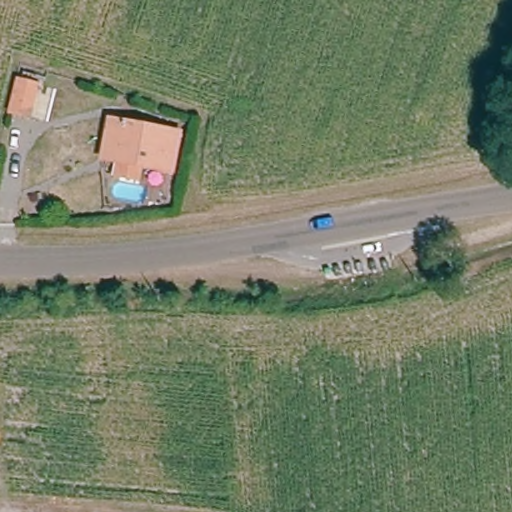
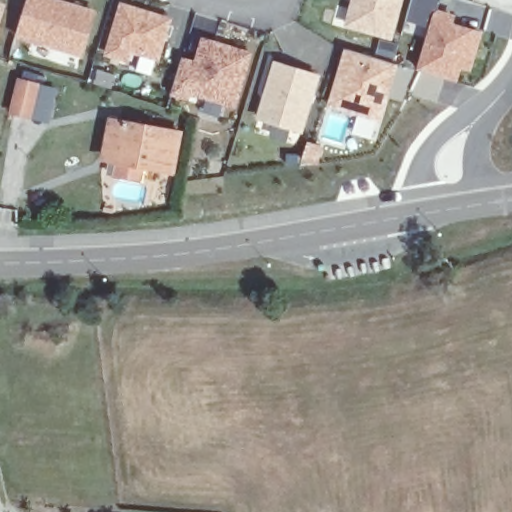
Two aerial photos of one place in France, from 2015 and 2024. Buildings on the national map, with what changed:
new [(94,10),(80,51),(15,31),(25,0),(61,0),(94,10)]
new [(390,35),(348,25),(355,0),(399,0),(390,35)]
new [(432,21),(428,36),(401,29),(409,4),(410,0),(439,0),(436,10),(451,14),(448,22),(480,32),(469,67),(460,64),(455,80),(442,76),(418,69),(432,21)]
new [(2,5),(0,16),(0,5),(2,5)]
new [(169,20),(157,58),(130,50),(126,60),(107,54),(122,6),(169,20)]
new [(195,61),(202,37),(249,52),(233,104),(187,90),(186,95),(170,90),(181,57),(195,61)]
new [(395,62),(378,118),(329,102),(346,47),(395,62)]
new [(300,128),(258,115),(275,61),(316,74),(300,128)]
unchanged [(36,82),(29,114),(12,109),(19,79),(36,82)]
unchanged [(174,131),(165,171),(135,165),(133,175),(111,171),(115,155),(99,151),(106,117),(174,131)]

